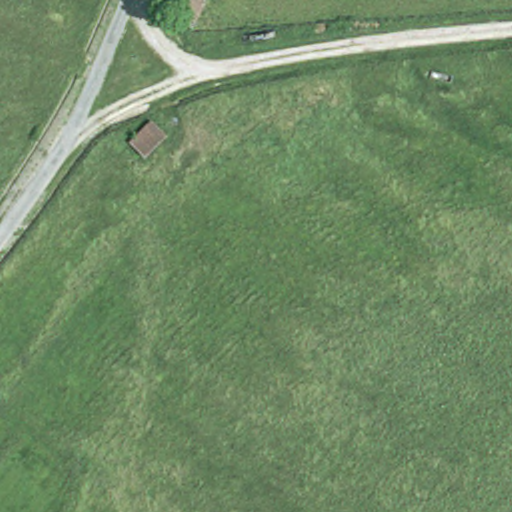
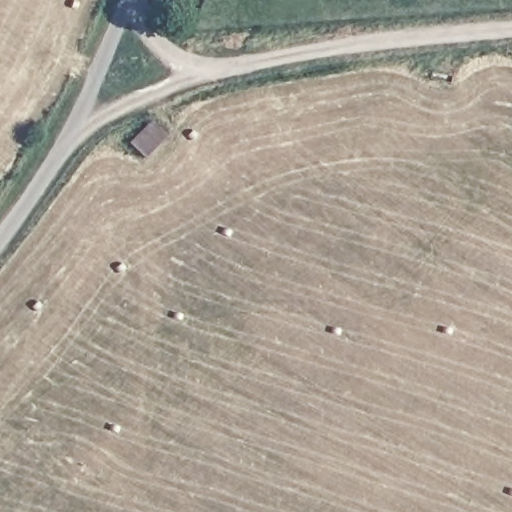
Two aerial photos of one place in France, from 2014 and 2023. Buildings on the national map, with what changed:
unchanged [(201,8),(174,0),(205,0),(201,8)]
unchanged [(148,123),(166,138),(149,162),(133,147),(148,123)]

